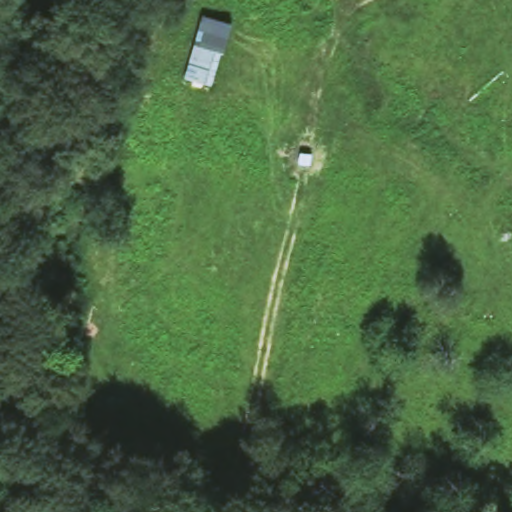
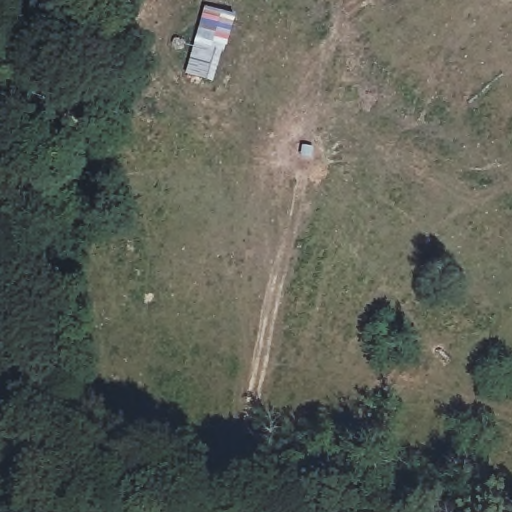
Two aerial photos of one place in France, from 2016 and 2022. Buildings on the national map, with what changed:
unchanged [(227,39),(221,71),(175,64),(181,34),(227,39)]

